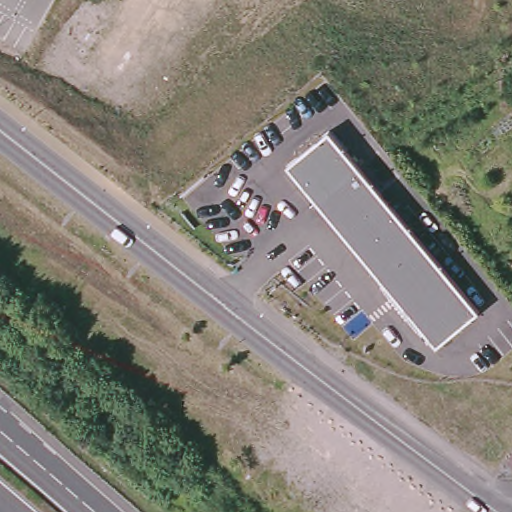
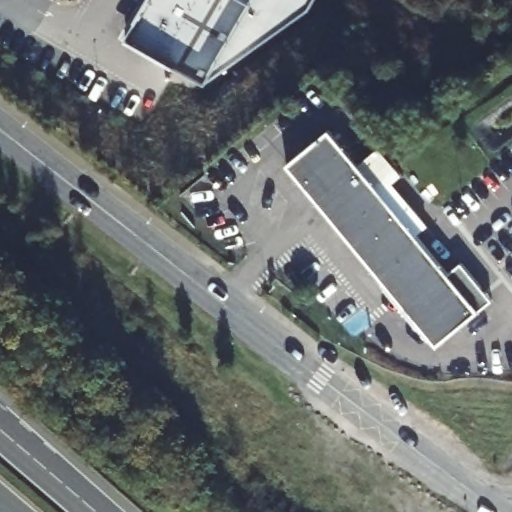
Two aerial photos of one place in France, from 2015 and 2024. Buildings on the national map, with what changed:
new [(315,0),(309,10),(206,84),(127,37),(148,0),(315,0)]
unchanged [(478,312),(437,346),(288,165),(329,130),(478,312)]

